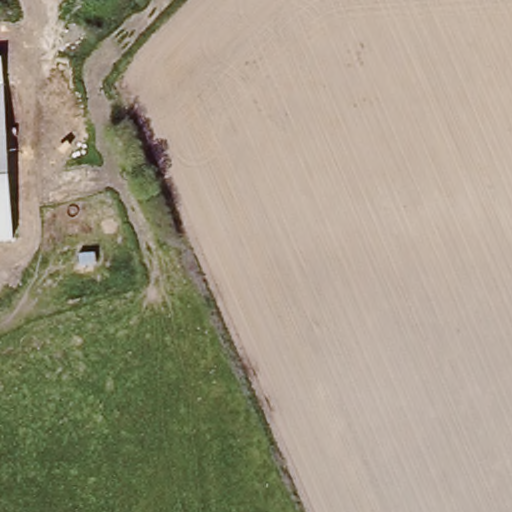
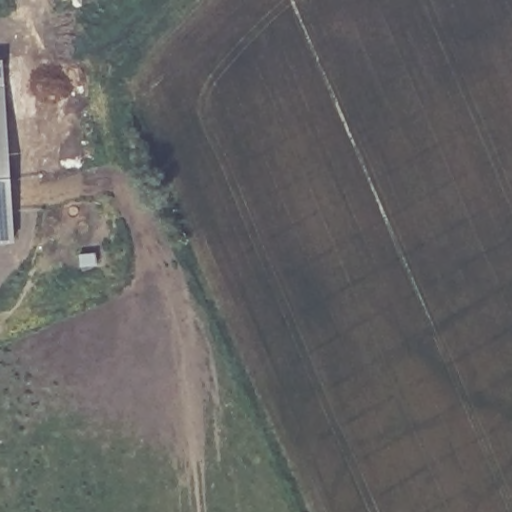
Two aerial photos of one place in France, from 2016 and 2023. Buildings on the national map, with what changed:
unchanged [(4,85),(14,238),(0,239),(0,56),(2,56),(4,85)]

